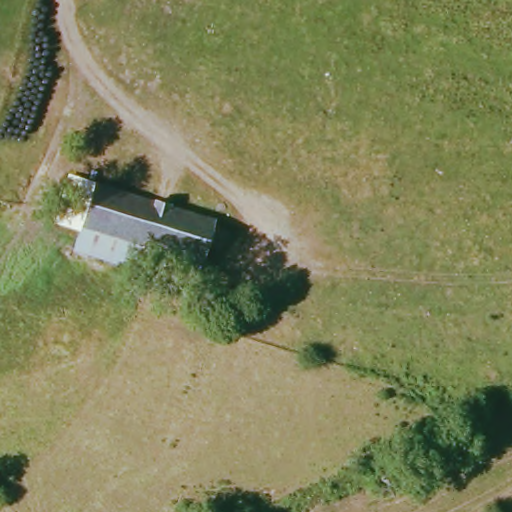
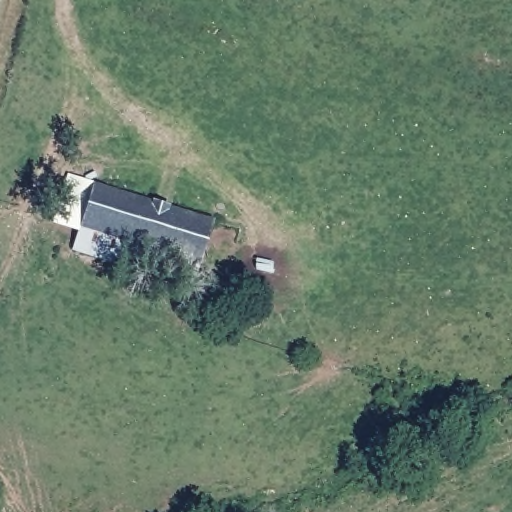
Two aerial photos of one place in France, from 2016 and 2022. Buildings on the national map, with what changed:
unchanged [(204,274),(79,241),(91,201),(213,233),(204,274)]

